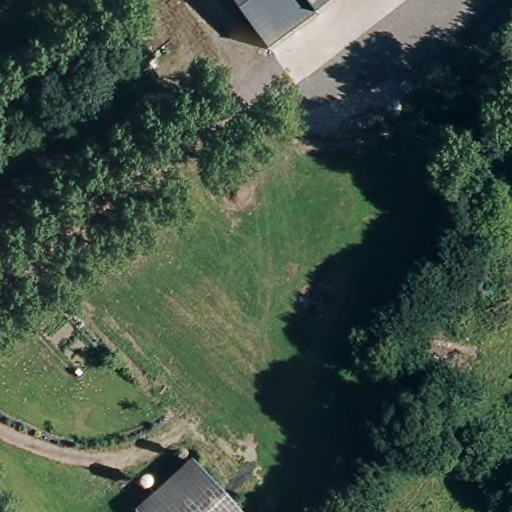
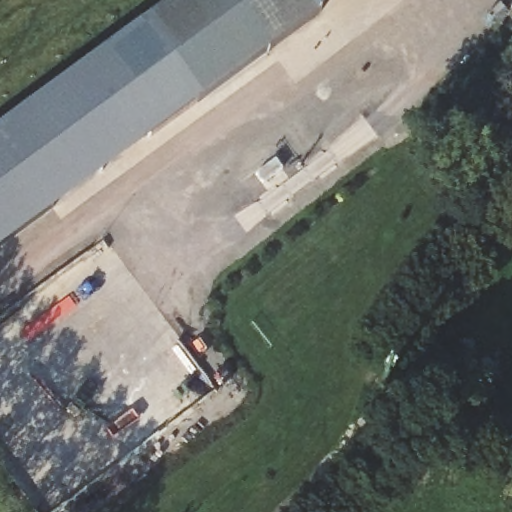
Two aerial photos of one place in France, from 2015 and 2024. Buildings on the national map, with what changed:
unchanged [(139,19),(165,0),(335,0),(203,100),(139,19)]
new [(0,249),(0,123),(139,19),(203,100),(0,249)]
demolished [(196,465),(236,512),(143,512),(196,465)]

